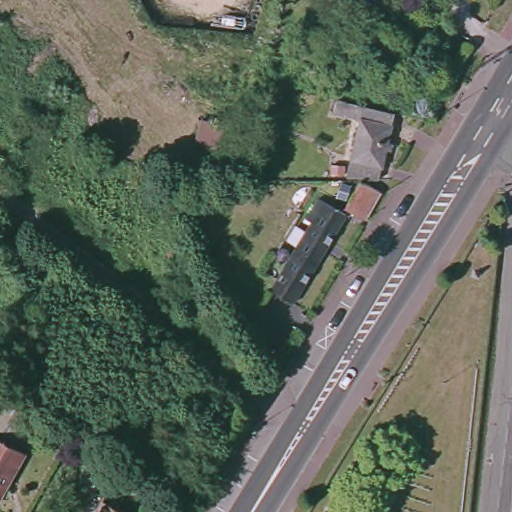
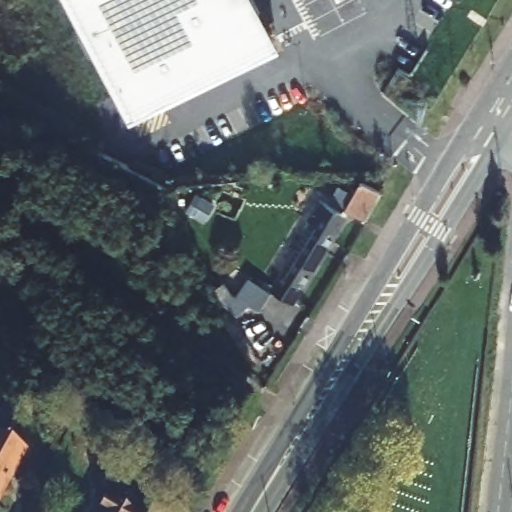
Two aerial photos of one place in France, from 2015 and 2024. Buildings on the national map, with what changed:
new [(253,0),(269,30),(264,51),(129,118),(70,0),(253,0)]
demolished [(380,174),(347,175),(363,109),(335,103),(338,95),(396,108),(380,174)]
demolished [(190,147),(195,115),(225,120),(220,151),(190,147)]
unchanged [(340,202),(357,176),(379,188),(362,215),(340,202)]
unchanged [(311,218),(306,215),(317,196),(343,211),(292,300),(272,288),(311,218)]
unchanged [(25,447),(0,494),(0,434),(25,447)]
unchanged [(106,500),(127,512),(98,512),(106,500)]

